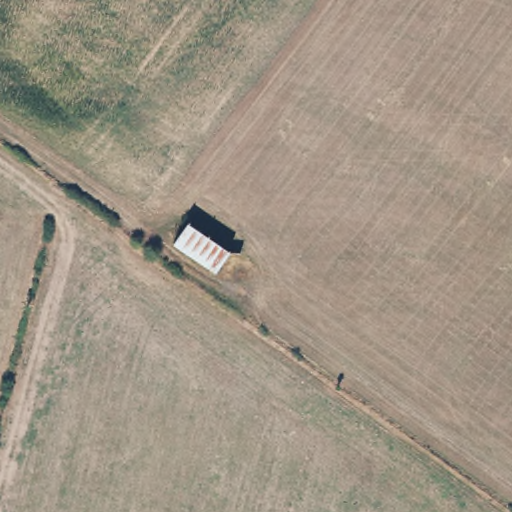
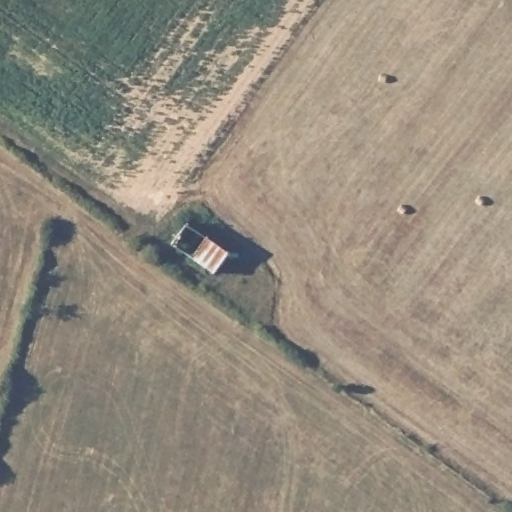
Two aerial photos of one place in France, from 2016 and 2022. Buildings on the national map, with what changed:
unchanged [(216,274),(172,243),(186,221),(229,250),(216,274)]

